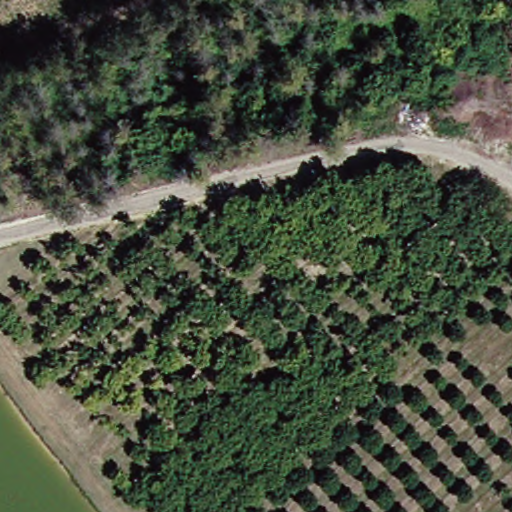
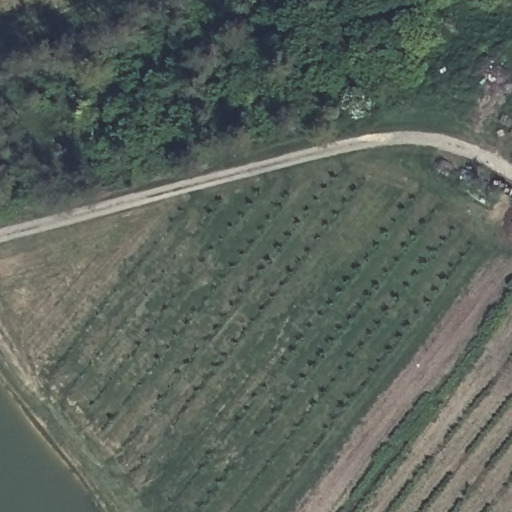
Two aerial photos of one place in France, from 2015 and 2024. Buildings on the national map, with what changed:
[]

